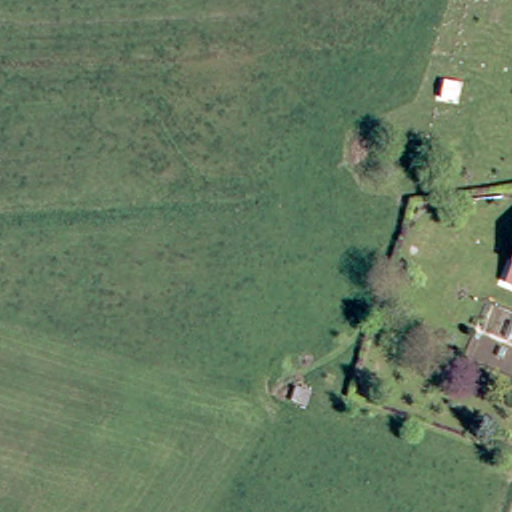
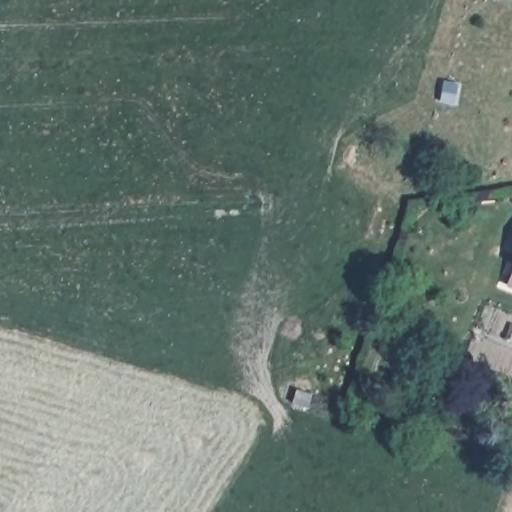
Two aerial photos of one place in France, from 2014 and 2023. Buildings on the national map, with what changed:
unchanged [(295,389),(310,393),(303,414),(289,410),(295,389)]

